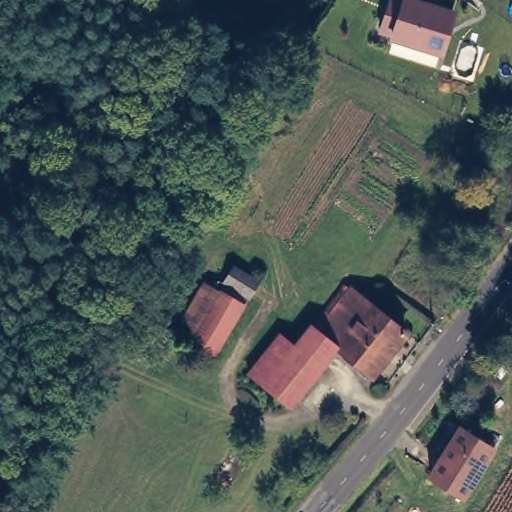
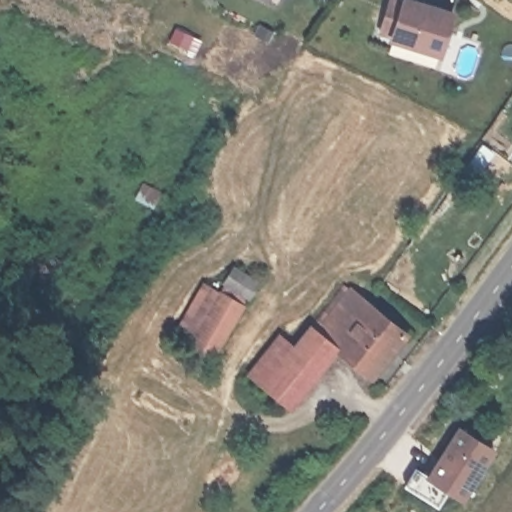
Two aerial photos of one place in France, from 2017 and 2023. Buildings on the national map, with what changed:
unchanged [(440,56),(435,55),(431,66),(382,52),(387,38),(378,35),(388,7),(398,9),(401,0),(419,0),(453,9),(440,56)]
unchanged [(200,284),(220,291),(236,270),(266,287),(215,361),(170,337),(200,284)]
unchanged [(345,290),(403,337),(369,379),(339,355),(291,413),(263,390),(345,290)]
unchanged [(423,475),(455,427),(485,447),(455,497),(423,475)]

